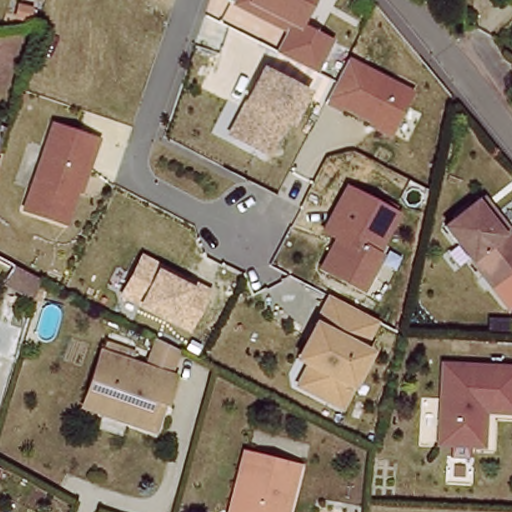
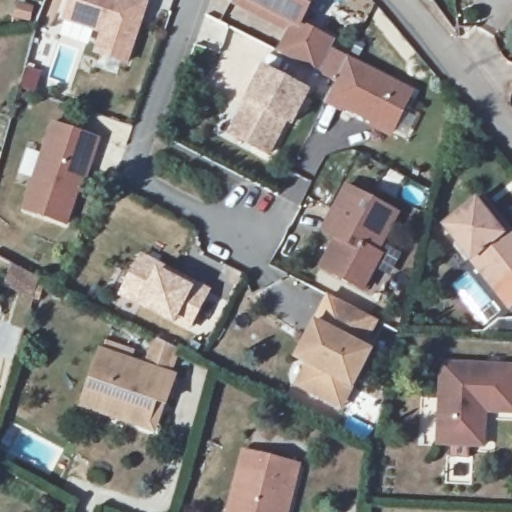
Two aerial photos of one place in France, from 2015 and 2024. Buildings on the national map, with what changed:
new [(138,0),(148,4),(129,66),(93,55),(100,35),(63,22),(70,0),(138,0)]
unchanged [(279,50),(289,29),(236,2),(237,0),(316,0),(306,23),(338,39),(323,71),(279,50)]
unchanged [(396,139),(371,127),(374,122),(348,110),(346,114),(328,105),(352,58),(419,91),(396,139)]
unchanged [(277,163),(226,137),(262,69),(313,93),(277,163)]
unchanged [(85,201),(77,199),(69,229),(23,214),(55,125),(104,141),(85,201)]
unchanged [(364,296),(320,273),(338,245),(321,234),(346,191),(401,220),(364,296)]
unchanged [(498,292),(447,230),(479,204),(485,200),(512,232),(512,280),(498,292)]
unchanged [(215,294),(193,340),(116,305),(143,255),(215,294)]
unchanged [(343,416),(294,391),(308,366),(295,360),(314,325),(328,301),(384,330),(343,416)]
unchanged [(159,402),(151,427),(129,420),(131,415),(110,407),(108,412),(86,405),(104,352),(178,378),(168,405),(159,402)]
unchanged [(476,443),(438,441),(443,361),(512,366),(512,411),(485,409),(483,444),(476,443)]
unchanged [(290,512),(229,512),(244,450),(253,452),(303,465),(290,512)]

